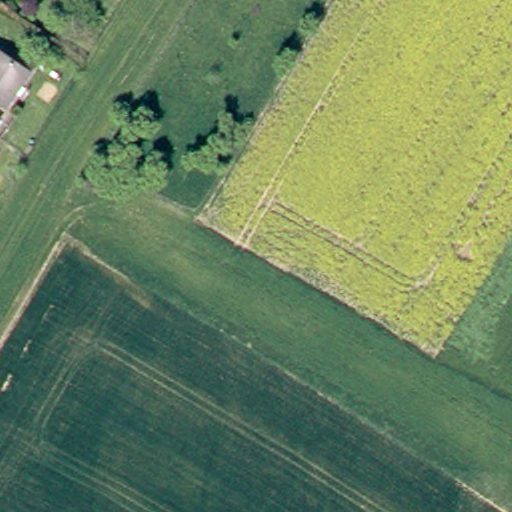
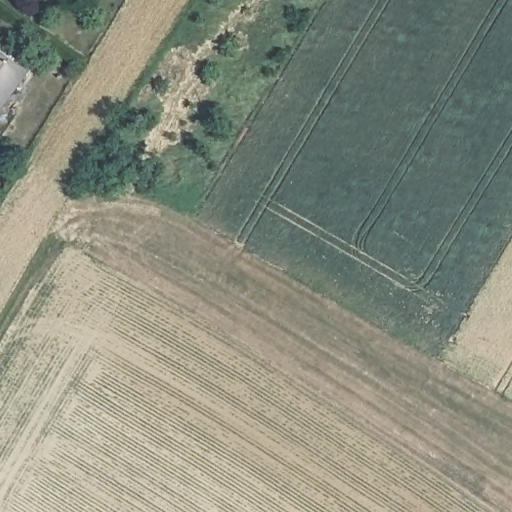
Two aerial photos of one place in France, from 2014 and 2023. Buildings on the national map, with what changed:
unchanged [(6,100),(1,97),(0,99),(0,48),(27,64),(6,100)]

